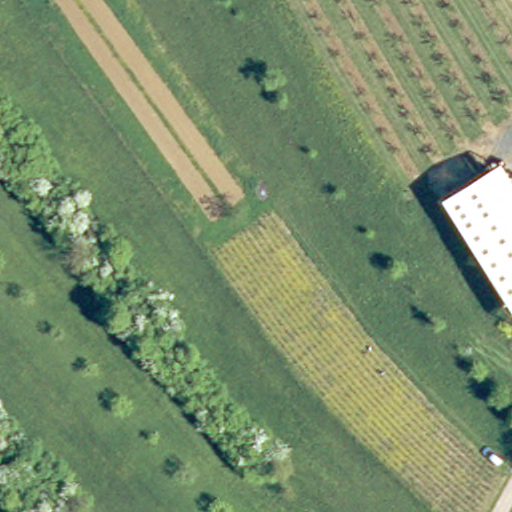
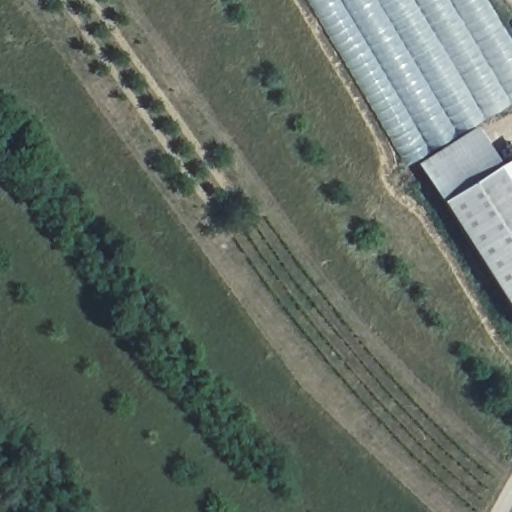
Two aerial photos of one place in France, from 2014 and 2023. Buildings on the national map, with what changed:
new [(401,166),(304,0),(485,0),(512,44),(512,102),(401,166)]
new [(473,125),(498,165),(512,156),(512,186),(500,165),(440,203),(438,204),(414,165),(473,125)]
unchanged [(500,165),(512,186),(512,316),(440,203),(500,165)]

